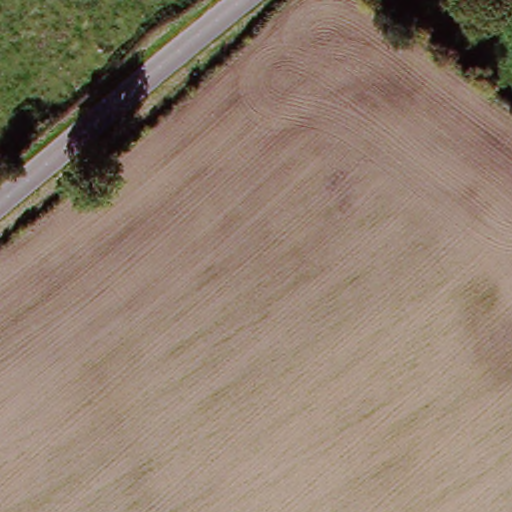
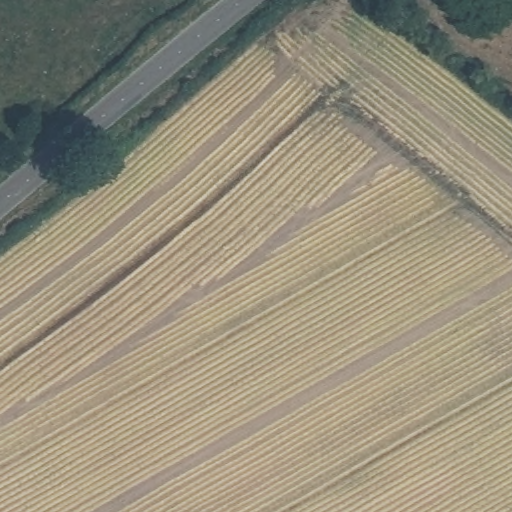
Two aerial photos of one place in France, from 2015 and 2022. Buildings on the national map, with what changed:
[]

